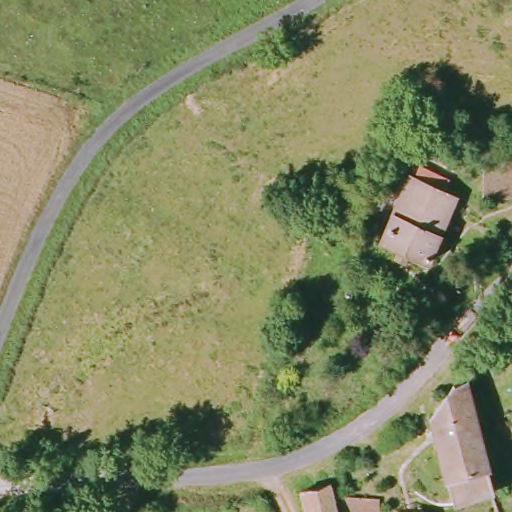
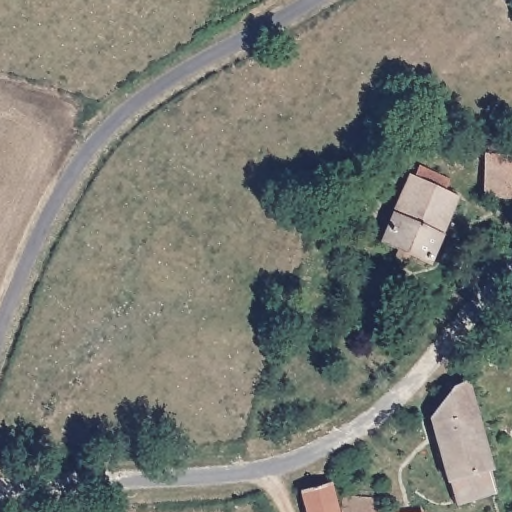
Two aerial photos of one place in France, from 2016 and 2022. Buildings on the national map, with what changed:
unchanged [(485,194),(490,161),(512,164),(512,198),(485,194)]
unchanged [(422,262),(376,241),(404,180),(408,182),(413,171),(442,185),(436,195),(450,201),(422,262)]
unchanged [(468,374),(488,481),(445,487),(430,410),(456,376),(468,374)]
unchanged [(329,512),(302,512),(301,509),(305,500),(326,496),(329,512)]

